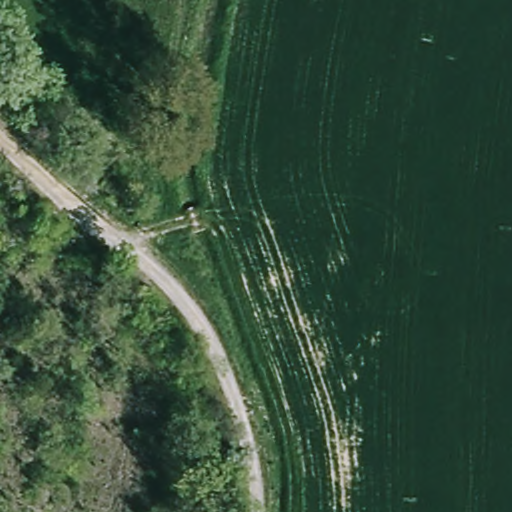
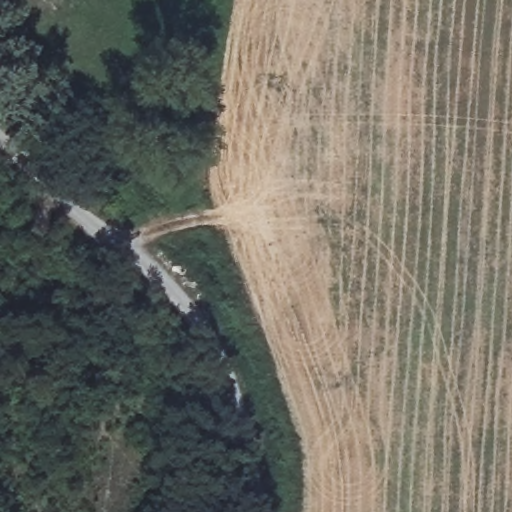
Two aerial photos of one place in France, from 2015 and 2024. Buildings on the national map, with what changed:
unchanged [(183,249),(176,239),(186,233),(193,243),(183,249)]

